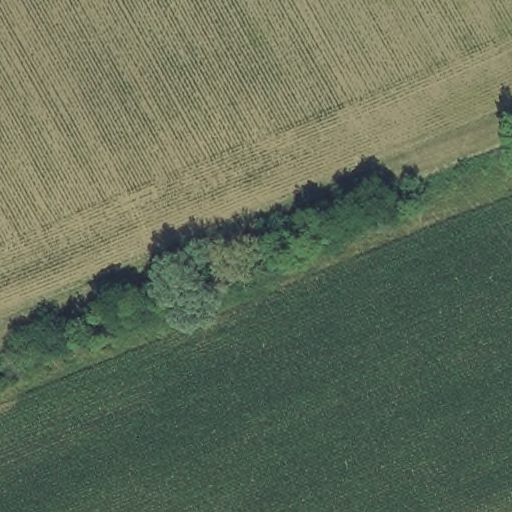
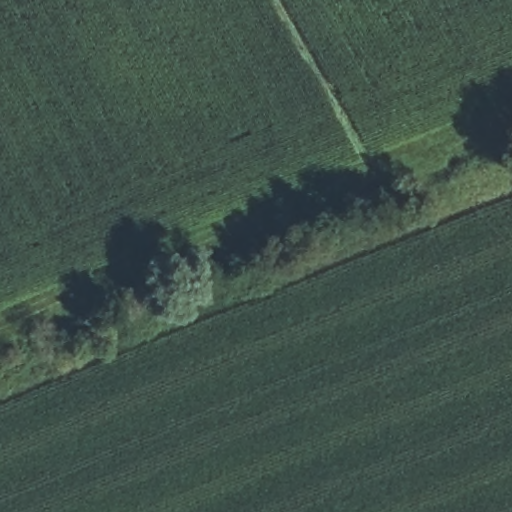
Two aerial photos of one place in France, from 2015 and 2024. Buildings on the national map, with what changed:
[]

